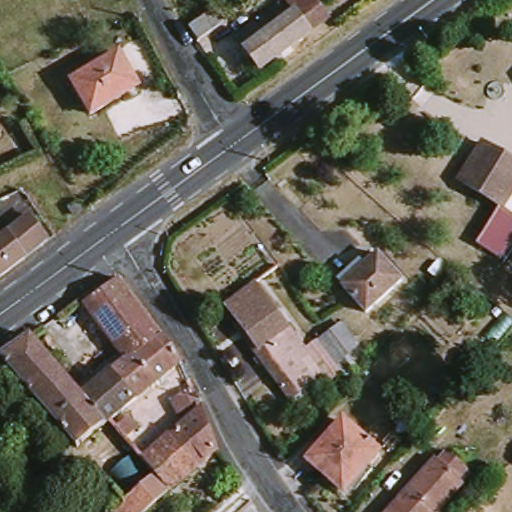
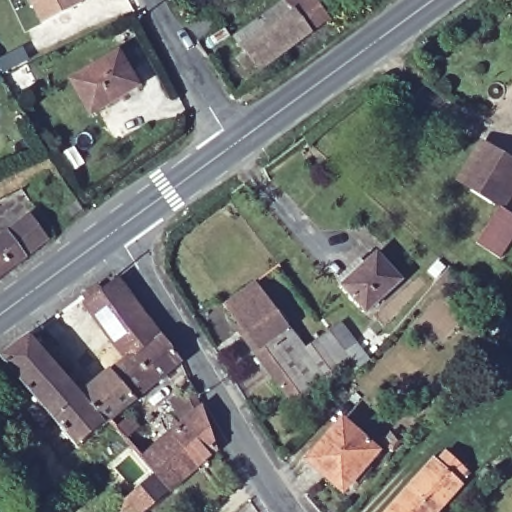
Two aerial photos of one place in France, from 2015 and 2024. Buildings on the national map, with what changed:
new [(80,6),(41,26),(28,0),(77,0),(80,6)]
unchanged [(249,45),(298,6),(296,4),(300,0),(317,0),(338,26),(322,39),(271,76),(249,45)]
unchanged [(225,31),(206,46),(196,34),(214,20),(225,31)]
unchanged [(140,85),(94,112),(76,79),(121,52),(140,85)]
unchanged [(503,208),(466,184),(489,146),(512,160),(512,194),(509,201),(512,203),(512,211),(507,233),(494,255),(483,248),(503,208)]
unchanged [(8,237),(39,213),(56,236),(26,259),(8,237)]
unchanged [(8,237),(26,259),(0,278),(0,243),(8,237)]
unchanged [(407,278),(374,310),(347,285),(380,251),(407,278)]
unchanged [(136,365),(94,309),(130,280),(173,337),(136,365)]
unchanged [(309,349),(350,320),(359,338),(367,334),(381,353),(341,389),(333,378),(295,400),(231,305),(263,281),(309,349)]
unchanged [(75,383),(49,400),(14,354),(40,336),(75,383)]
unchanged [(144,401),(124,373),(136,365),(173,337),(192,362),(144,401)]
unchanged [(97,393),(124,373),(144,401),(118,421),(97,393)]
unchanged [(84,447),(65,424),(49,400),(75,383),(87,399),(97,393),(118,421),(84,447)]
unchanged [(207,466),(179,433),(187,426),(176,399),(190,391),(201,415),(212,405),(227,450),(209,468),(207,466)]
unchanged [(139,421),(146,431),(134,441),(126,430),(139,421)]
unchanged [(132,512),(133,511),(164,479),(143,451),(170,423),(179,433),(207,466),(158,512),(132,512)]
unchanged [(349,489),(311,463),(343,425),(378,455),(349,489)]
unchanged [(450,459),(455,452),(473,467),(465,478),(470,482),(441,512),(395,512),(444,459),(450,459)]
unchanged [(107,512),(124,499),(130,507),(124,512),(107,512)]

